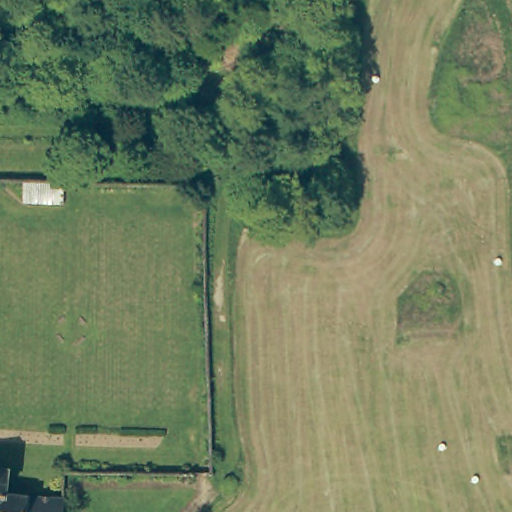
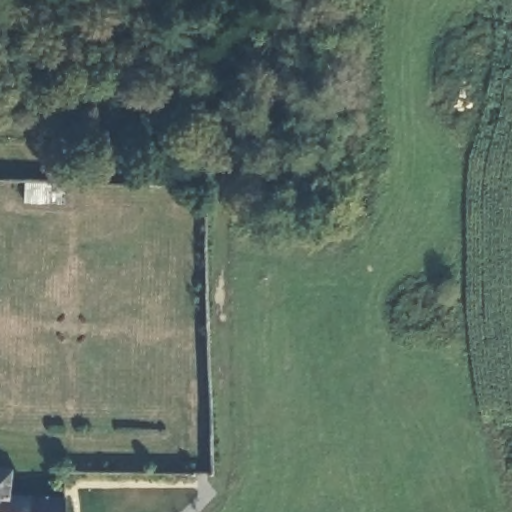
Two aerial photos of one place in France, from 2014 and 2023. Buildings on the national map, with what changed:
unchanged [(48,206),(7,205),(7,180),(48,181),(48,206)]
unchanged [(0,494),(54,502),(54,512),(0,512),(0,494)]

